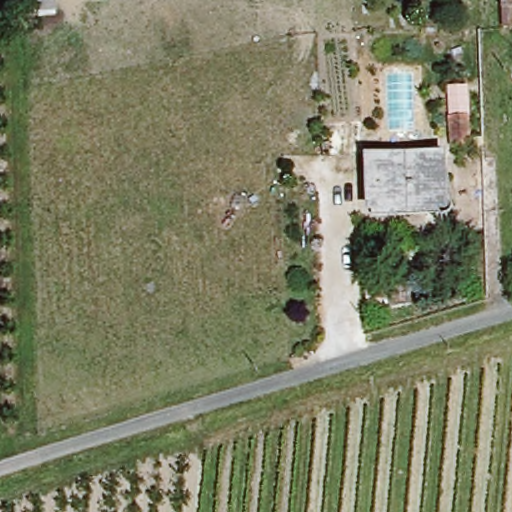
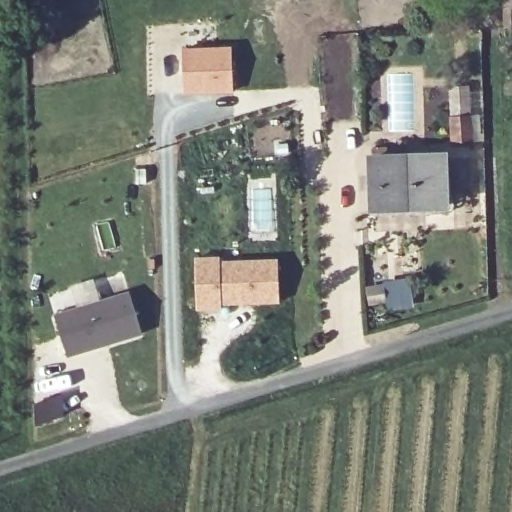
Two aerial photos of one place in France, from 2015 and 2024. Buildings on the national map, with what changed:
unchanged [(512,9),(512,28),(505,29),(504,0),(512,0),(512,9)]
new [(230,46),(233,94),(183,95),(183,49),(230,46)]
unchanged [(474,135),(456,138),(453,114),(471,111),(474,135)]
demolished [(506,156),(488,159),(485,135),(503,132),(506,156)]
unchanged [(442,154),(444,175),(432,176),(435,205),(380,212),(373,161),(442,154)]
new [(220,306),(220,310),(198,312),(195,258),(218,257),(218,261),(276,260),(277,304),(220,306)]
new [(133,292),(144,333),(69,355),(58,315),(133,292)]
new [(65,400),(67,422),(36,425),(35,403),(65,400)]

